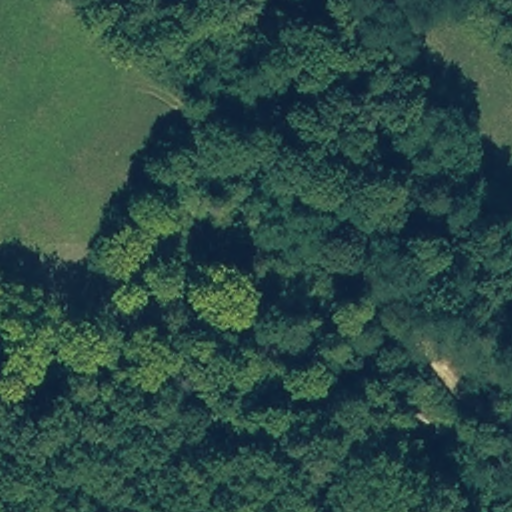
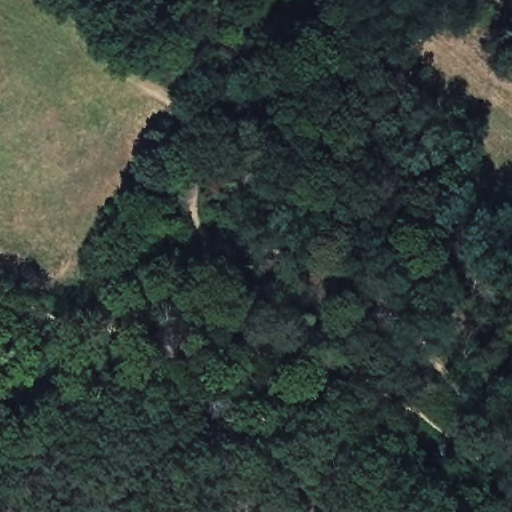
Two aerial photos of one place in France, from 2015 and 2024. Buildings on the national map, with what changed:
[]

